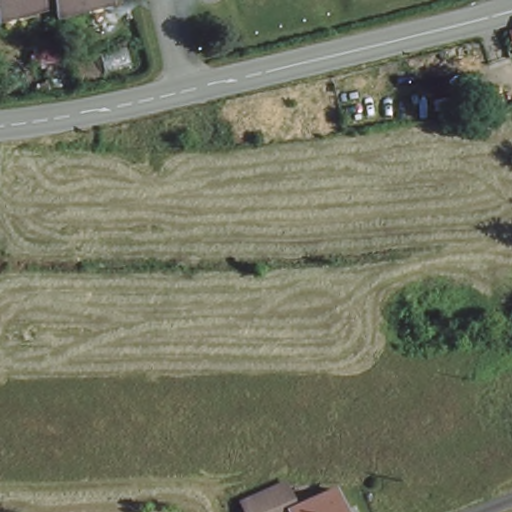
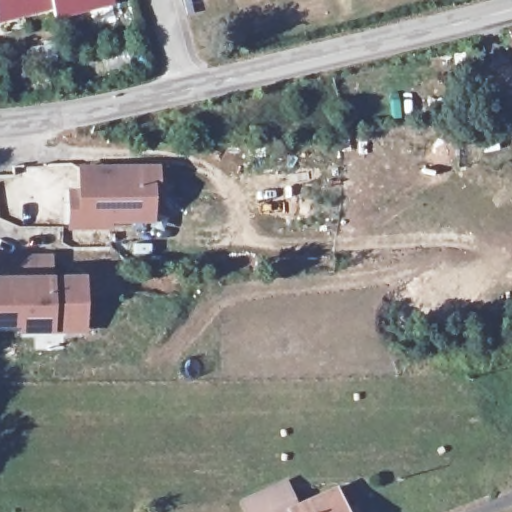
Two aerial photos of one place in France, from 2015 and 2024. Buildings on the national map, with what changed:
unchanged [(53,6),(3,21),(0,11),(0,0),(112,0),(113,2),(56,18),(53,6)]
unchanged [(512,30),(512,48),(510,49),(505,32),(512,30)]
new [(113,231),(67,232),(65,190),(77,190),(77,166),(158,165),(160,188),(153,189),(155,225),(112,225),(113,231)]
new [(0,275),(21,275),(22,253),(53,252),(53,274),(85,273),(87,335),(54,335),(0,336),(0,275)]
unchanged [(296,512),(243,512),(240,508),(287,486),(298,511),(296,512)]
unchanged [(332,495),(341,512),(296,512),(298,511),(332,495)]

